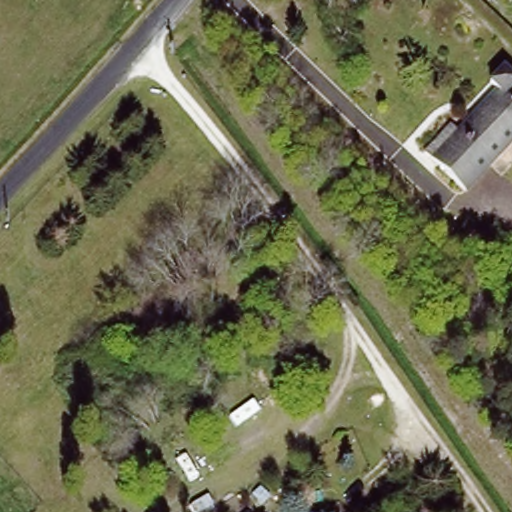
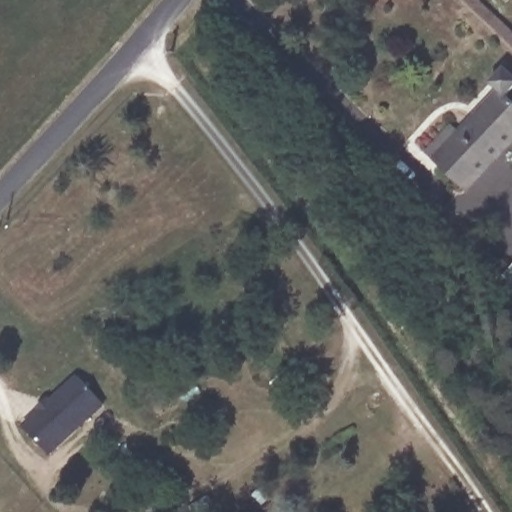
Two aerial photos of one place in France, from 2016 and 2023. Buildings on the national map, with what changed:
unchanged [(509,5),(503,0),(512,0),(512,1),(509,5)]
unchanged [(490,82),(502,69),(512,79),(512,85),(505,93),(512,100),(512,138),(465,193),(423,154),(450,127),(457,133),(497,89),(490,82)]
new [(51,455),(24,426),(78,375),(106,404),(51,455)]

